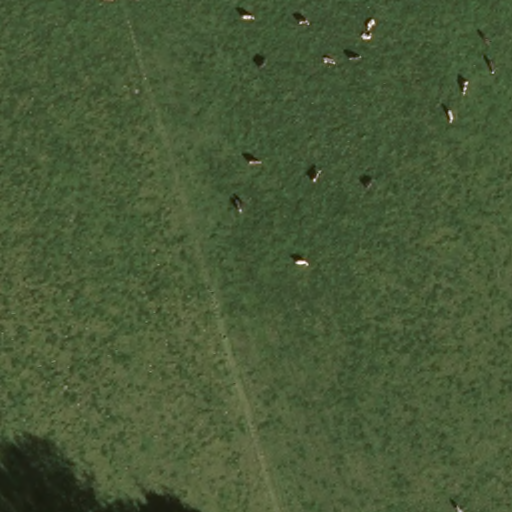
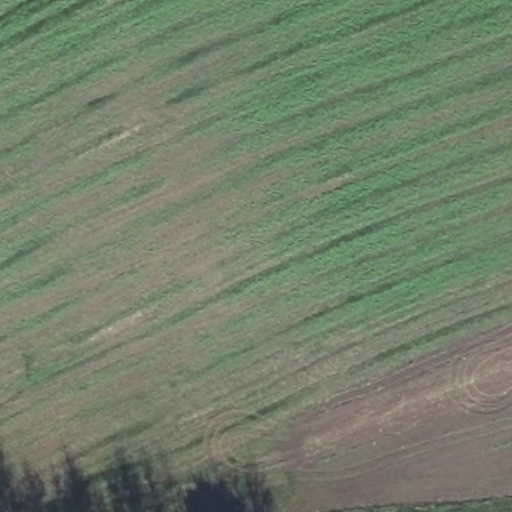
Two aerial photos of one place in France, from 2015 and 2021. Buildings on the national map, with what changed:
[]

